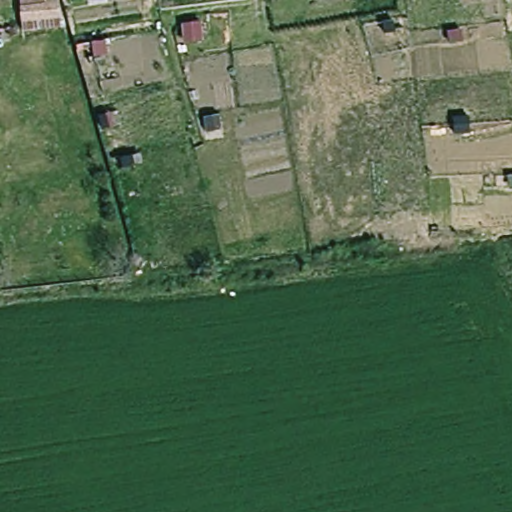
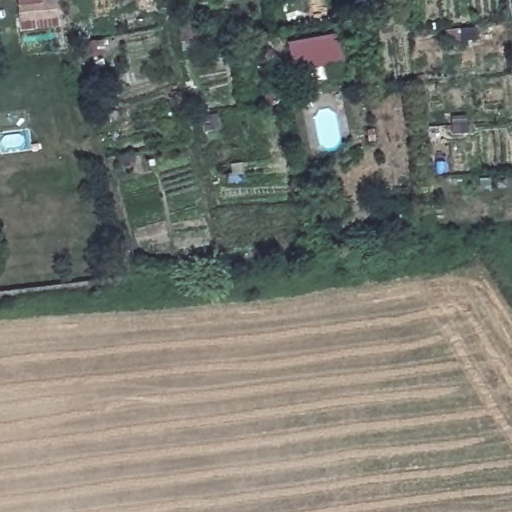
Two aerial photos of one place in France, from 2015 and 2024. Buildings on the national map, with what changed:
unchanged [(62,26),(20,30),(19,0),(60,0),(62,26)]
unchanged [(197,1),(173,2),(173,0),(197,0),(197,1)]
new [(288,42),(340,32),(346,61),(295,72),(288,42)]

